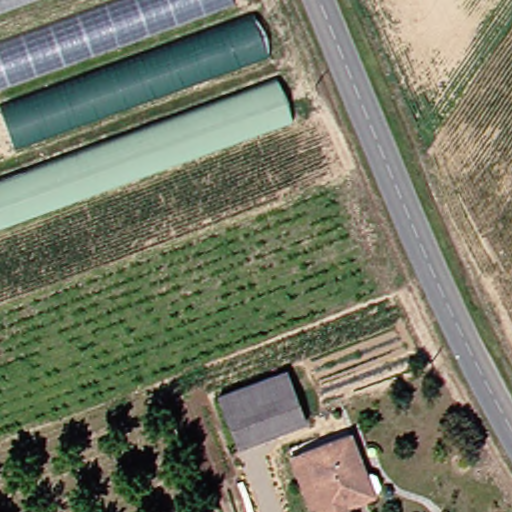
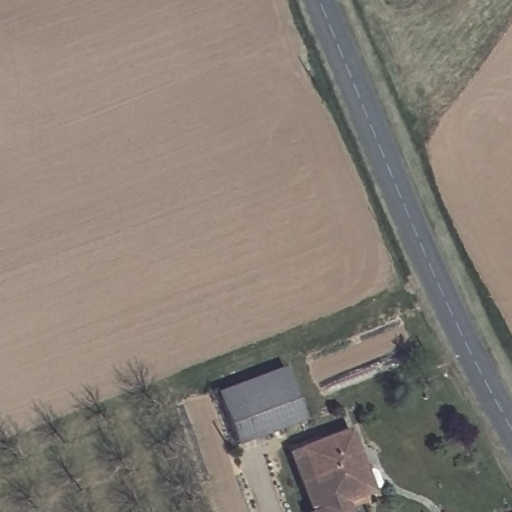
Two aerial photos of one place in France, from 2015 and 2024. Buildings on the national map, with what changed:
demolished [(0,5),(0,0),(14,0),(0,5)]
demolished [(0,81),(0,33),(92,0),(219,0),(0,81)]
demolished [(6,146),(0,130),(0,100),(244,11),(257,55),(6,146)]
demolished [(0,221),(0,172),(267,76),(280,116),(0,221)]
unchanged [(228,444),(209,394),(277,368),(296,417),(228,444)]
unchanged [(303,512),(281,456),(292,452),(342,433),(349,451),(365,494),(355,498),(340,504),(344,512),(303,512)]

